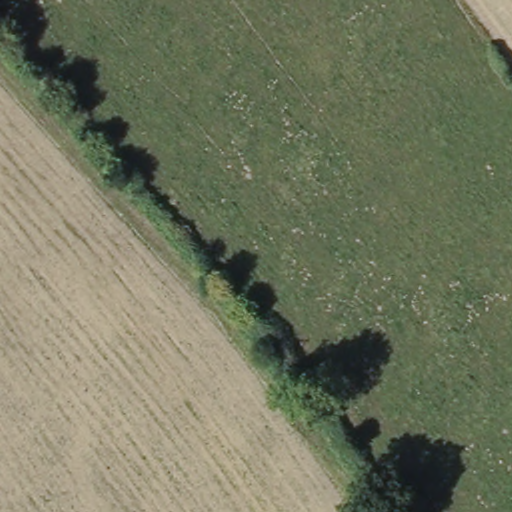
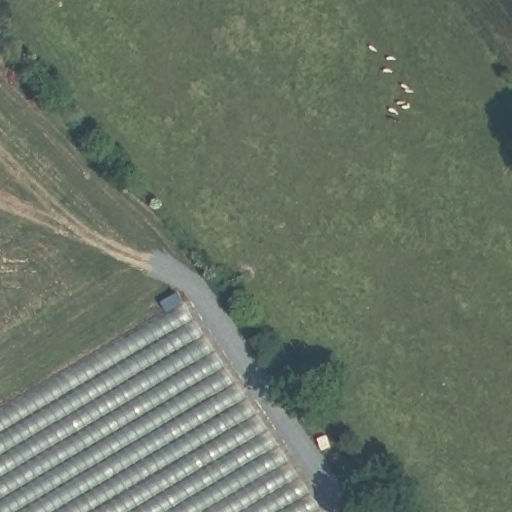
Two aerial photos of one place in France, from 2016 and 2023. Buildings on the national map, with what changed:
new [(330,512),(0,512),(0,409),(188,297),(330,512)]

